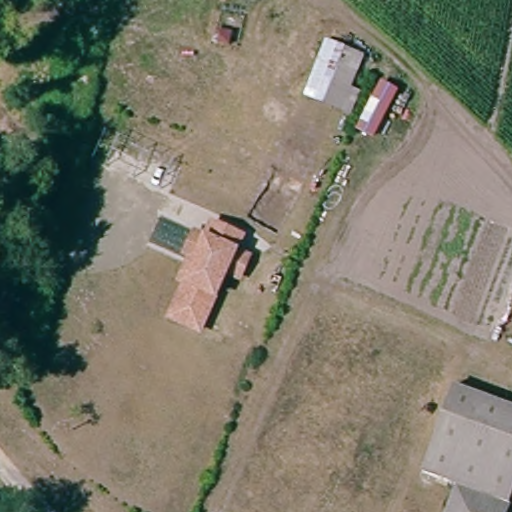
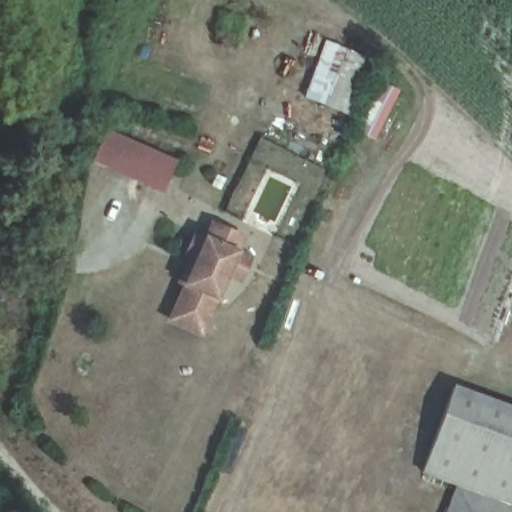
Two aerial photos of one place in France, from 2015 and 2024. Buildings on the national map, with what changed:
unchanged [(339,30),(372,44),(368,53),(348,98),(313,83),(336,29),(339,30)]
new [(161,193),(94,163),(108,128),(177,159),(161,193)]
unchanged [(247,237),(241,252),(254,258),(245,279),(232,273),(206,332),(175,318),(190,283),(184,281),(195,257),(189,255),(198,234),(209,239),(216,224),(247,237)]
unchanged [(505,499),(438,475),(426,471),(456,386),(512,406),(512,477),(505,499)]
unchanged [(503,512),(454,512),(461,495),(504,512),(503,512)]

